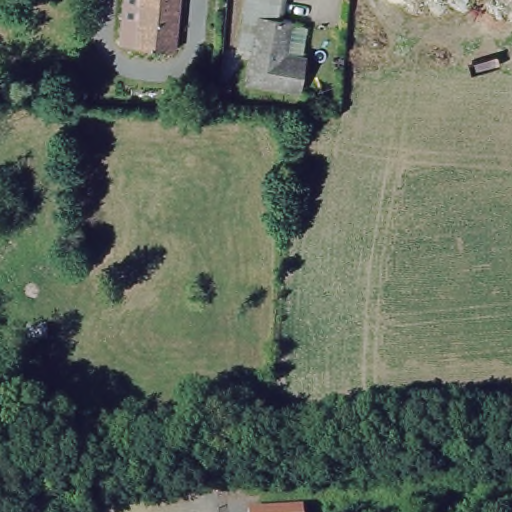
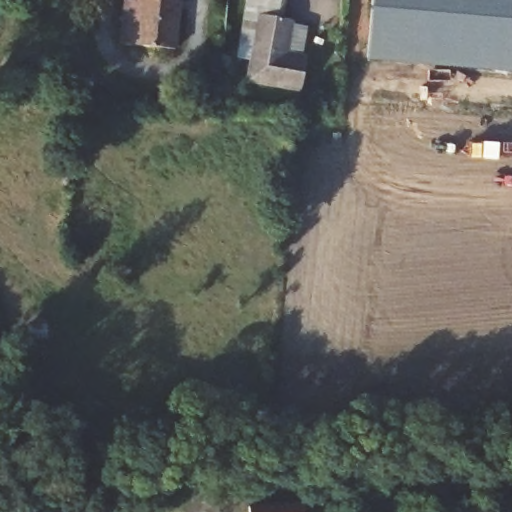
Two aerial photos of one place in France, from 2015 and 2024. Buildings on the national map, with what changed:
unchanged [(126,46),(124,46),(127,0),(181,0),(177,51),(126,46)]
unchanged [(246,0),(283,0),(279,22),(260,19),(255,49),(239,45),(246,0)]
new [(372,0),(512,0),(512,74),(367,63),(372,0)]
unchanged [(260,19),(290,24),(285,57),(306,61),(301,92),(249,83),(260,19)]
unchanged [(44,312),(47,326),(28,330),(25,317),(44,312)]
unchanged [(304,502),(305,512),(250,512),(250,506),(304,502)]

